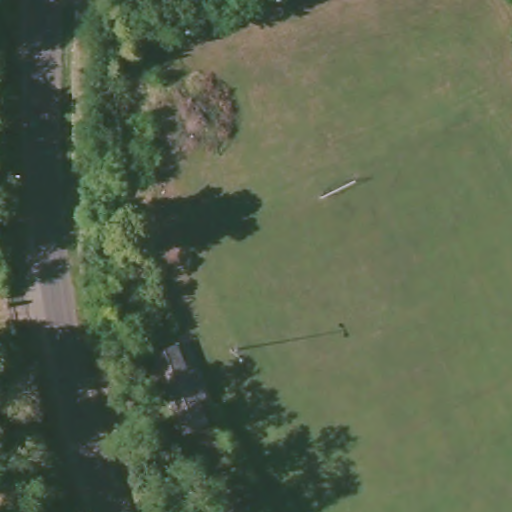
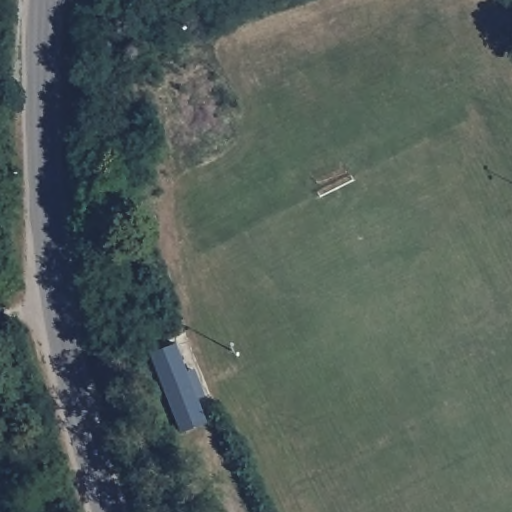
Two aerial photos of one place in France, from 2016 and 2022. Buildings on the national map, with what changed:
unchanged [(208,397),(199,400),(208,425),(184,432),(163,363),(158,348),(164,347),(181,342),(192,377),(200,375),(208,397)]

